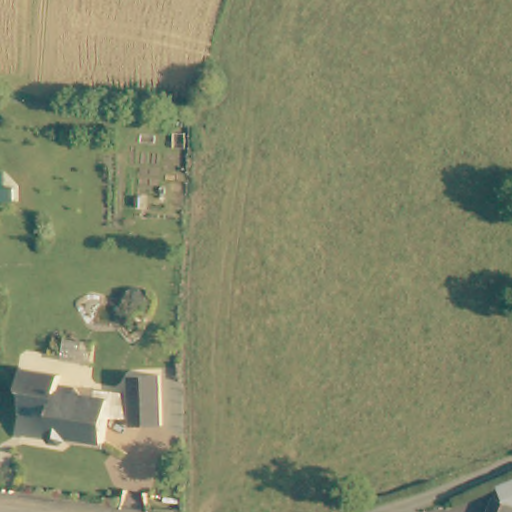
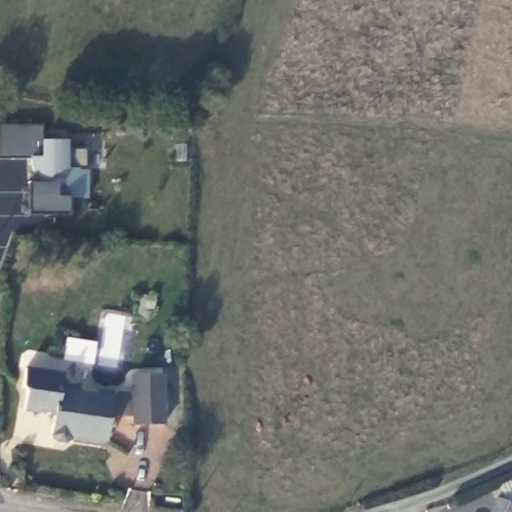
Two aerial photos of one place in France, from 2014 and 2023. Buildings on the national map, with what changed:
new [(41,125),(42,141),(68,141),(68,150),(85,150),(86,170),(90,170),(88,198),(69,197),(69,215),(29,215),(29,182),(40,182),(38,171),(34,171),(31,159),(0,159),(0,125),(41,125)]
unchanged [(67,376),(65,387),(81,389),(86,396),(116,400),(109,444),(74,438),(73,441),(68,445),(58,443),(54,438),(54,435),(55,436),(57,417),(27,412),(30,394),(26,389),(29,371),(67,376)]
unchanged [(161,371),(167,421),(137,425),(131,375),(161,371)]
unchanged [(511,487),(512,486),(512,491),(511,489),(511,487)]
unchanged [(499,503),(512,508),(512,512),(495,512),(499,503)]

